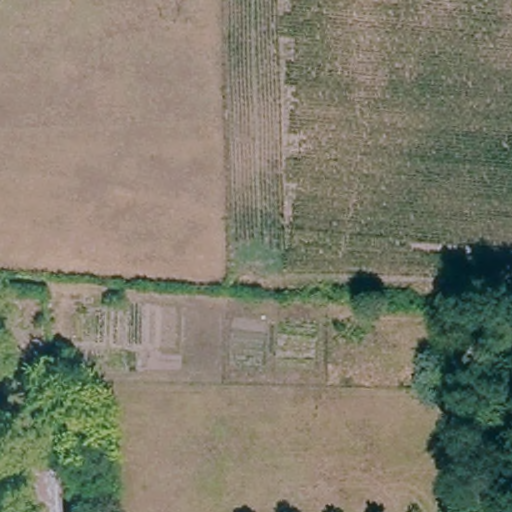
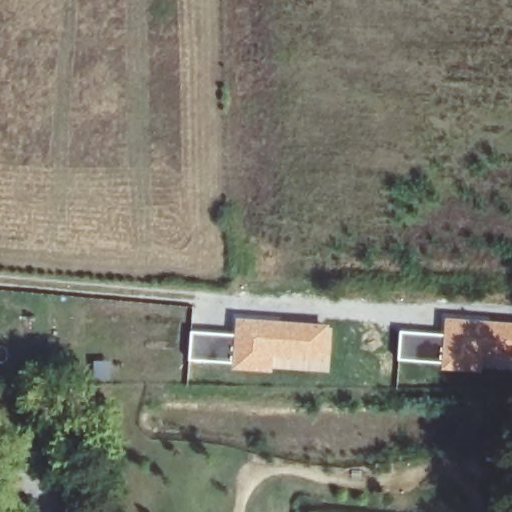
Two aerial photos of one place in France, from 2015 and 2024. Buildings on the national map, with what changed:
new [(231,364),(234,332),(235,315),(332,323),(329,373),(274,369),(273,372),(230,369),(231,364)]
new [(443,332),(445,315),(512,321),(512,373),(440,369),(440,364),(443,332)]
new [(190,329),(234,332),(231,364),(187,360),(190,329)]
new [(399,329),(443,332),(440,364),(397,360),(399,329)]
unchanged [(60,512),(20,512),(15,477),(54,472),(60,512)]
unchanged [(512,503),(512,512),(495,512),(494,504),(512,503)]
new [(311,512),(311,510),(324,512),(311,512)]

